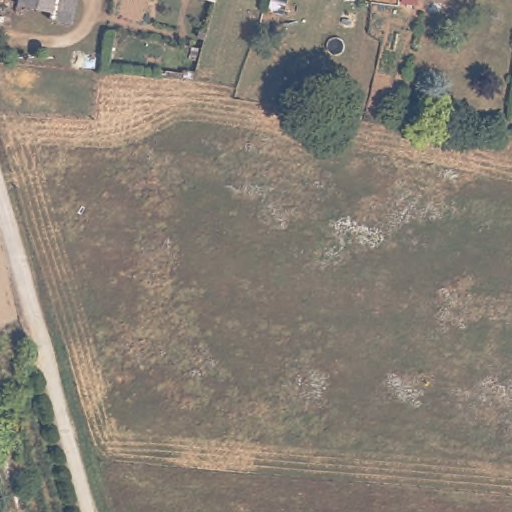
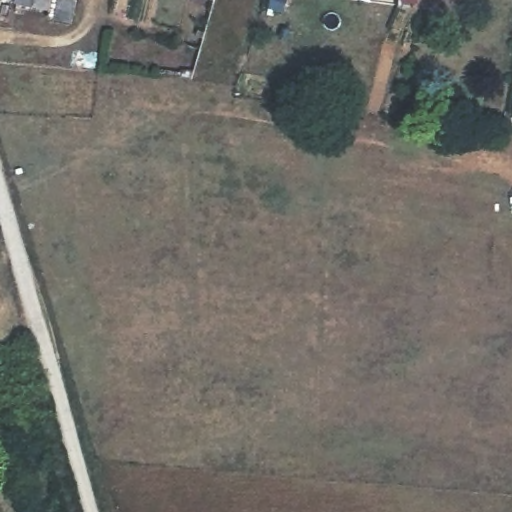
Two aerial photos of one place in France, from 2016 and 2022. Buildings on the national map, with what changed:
unchanged [(72,21),(49,16),(50,9),(16,0),(76,0),(72,21)]

